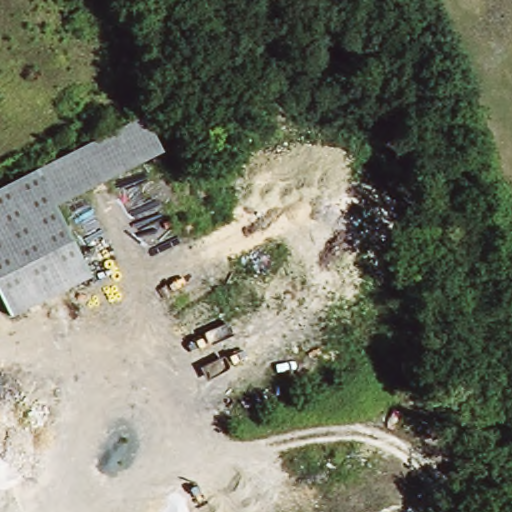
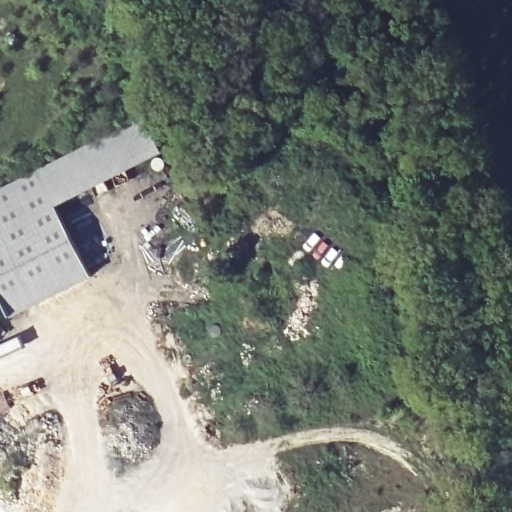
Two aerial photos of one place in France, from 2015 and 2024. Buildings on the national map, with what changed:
unchanged [(42,170),(148,119),(165,155),(60,207),(42,170)]
unchanged [(94,276),(12,317),(0,294),(0,192),(42,170),(60,207),(94,276)]

